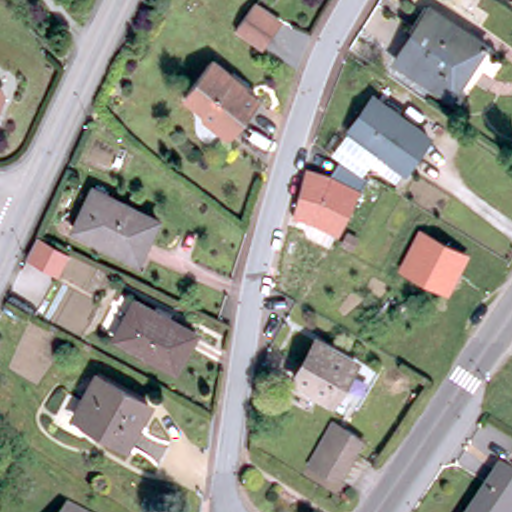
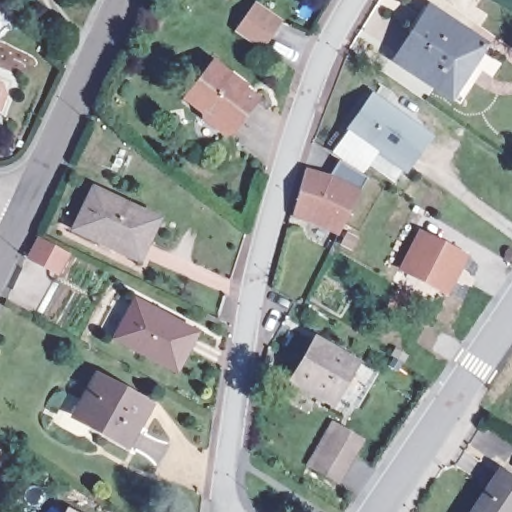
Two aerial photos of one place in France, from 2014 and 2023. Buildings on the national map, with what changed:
unchanged [(224,30),(242,3),(269,20),(251,47),(224,30)]
unchanged [(399,57),(431,7),(487,43),(454,94),(399,57)]
unchanged [(210,63),(230,77),(226,83),(242,94),(243,93),(256,102),(232,133),(219,135),(202,123),(204,113),(184,99),(210,63)]
unchanged [(369,159),(360,172),(333,154),(351,130),(373,98),(426,137),(404,168),(403,168),(396,178),(369,159)]
unchanged [(368,178),(340,236),(294,217),(307,165),(337,174),(345,162),(360,172),(368,178)]
unchanged [(135,256),(72,224),(90,187),(154,218),(135,256)]
unchanged [(472,253),(451,295),(399,269),(420,227),(472,253)]
unchanged [(136,298),(196,332),(175,370),(115,336),(136,298)]
unchanged [(328,405),(291,382),(314,345),(351,368),(328,405)]
unchanged [(99,376),(148,404),(125,444),(77,416),(99,376)]
unchanged [(332,424),(355,438),(331,479),(309,465),(332,424)]
unchanged [(512,484),(512,512),(468,512),(495,472),(512,484)]

